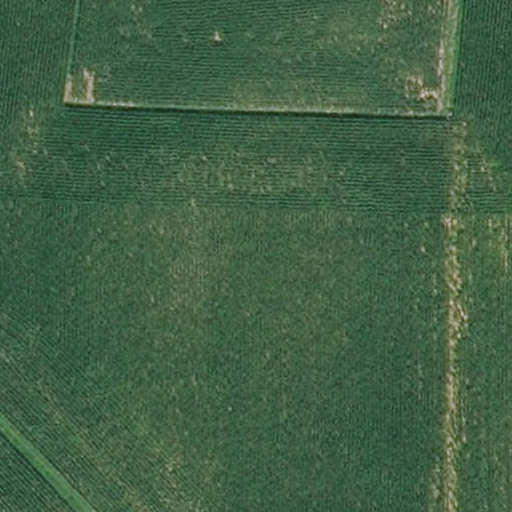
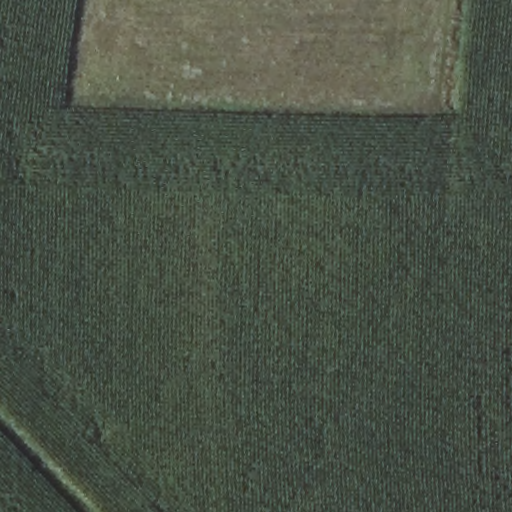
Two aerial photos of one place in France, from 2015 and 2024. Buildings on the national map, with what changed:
[]

